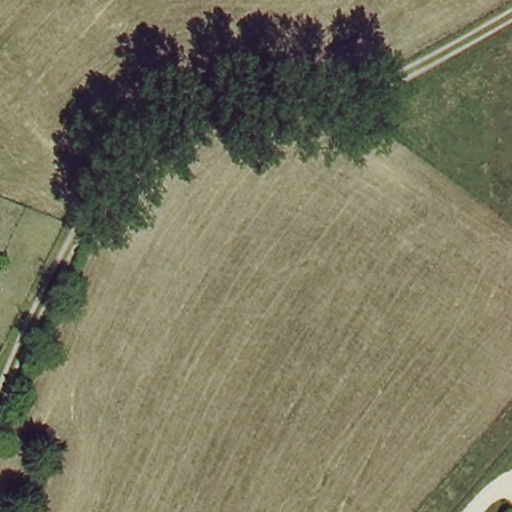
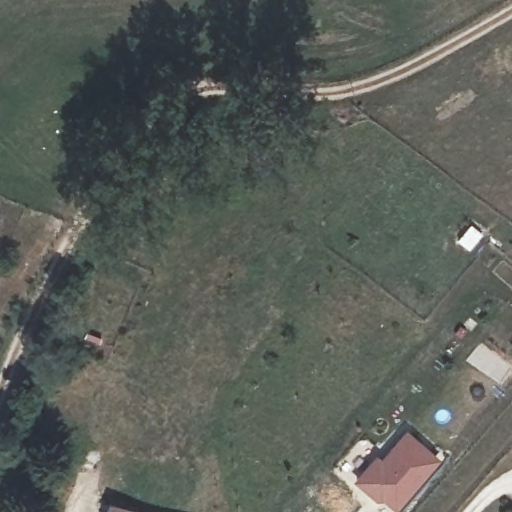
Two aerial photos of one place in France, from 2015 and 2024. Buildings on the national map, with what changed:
new [(376,453),(382,458),(405,430),(441,459),(395,510),(380,497),(377,502),(353,480),(376,453)]
new [(110,502),(153,512),(108,512),(110,502)]

